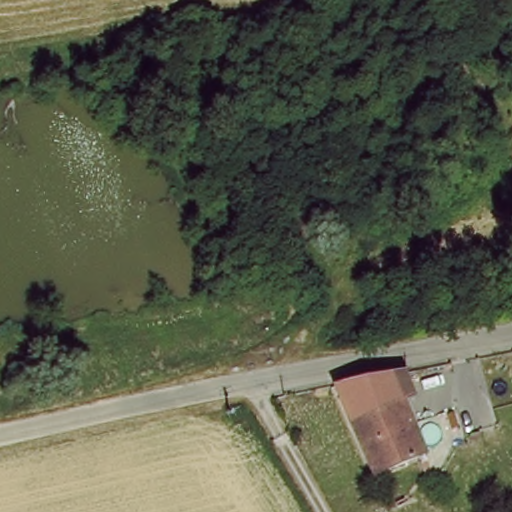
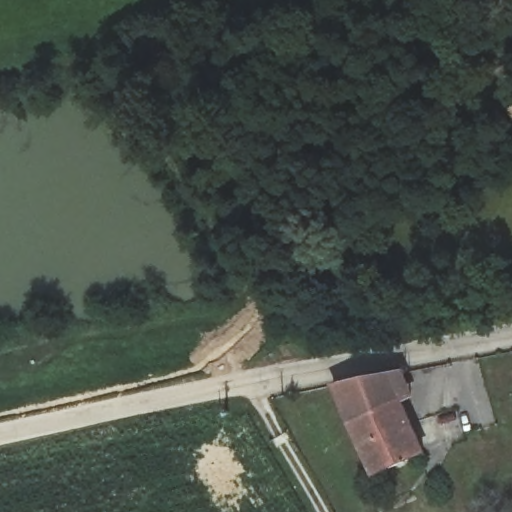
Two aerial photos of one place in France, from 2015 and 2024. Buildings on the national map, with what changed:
unchanged [(343,416),(329,384),(352,380),(396,371),(408,394),(396,399),(343,416)]
unchanged [(396,399),(424,457),(372,475),(343,416),(396,399)]

